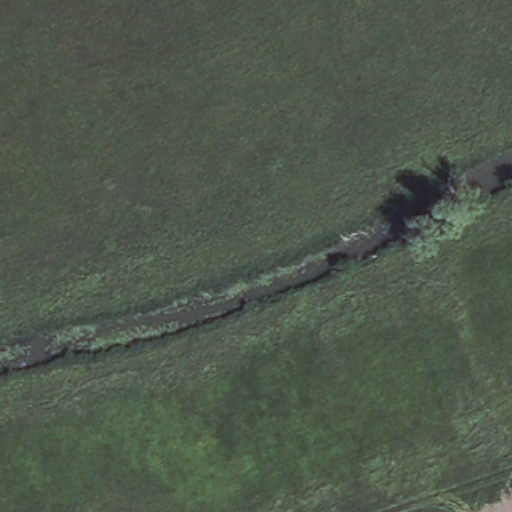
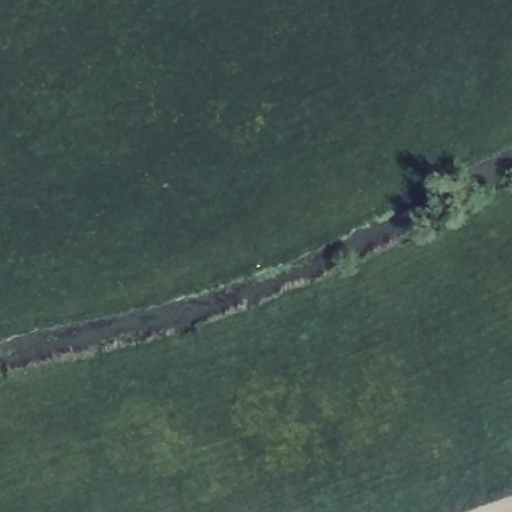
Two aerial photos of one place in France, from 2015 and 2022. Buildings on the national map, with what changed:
[]

